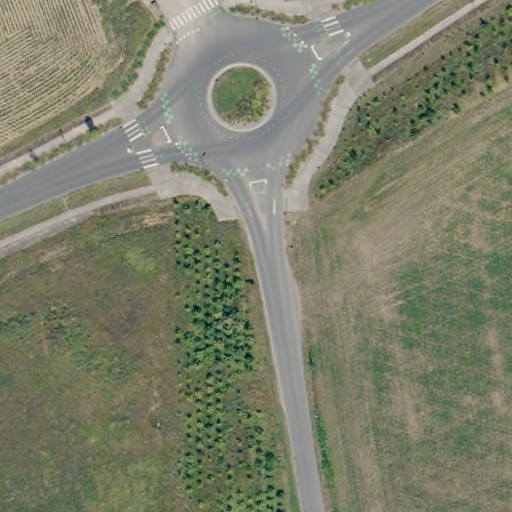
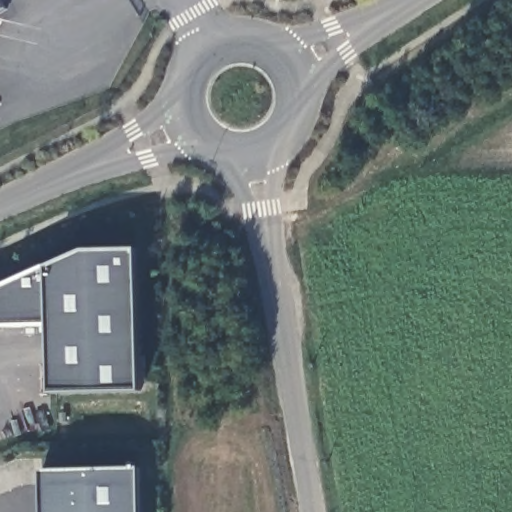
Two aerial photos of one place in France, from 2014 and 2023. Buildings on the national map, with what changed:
new [(9,7),(0,13),(0,0),(4,0),(9,7)]
new [(49,326),(0,326),(0,288),(47,266),(84,250),(138,249),(143,391),(51,392),(49,326)]
new [(140,468),(141,512),(42,512),(41,471),(140,468)]

